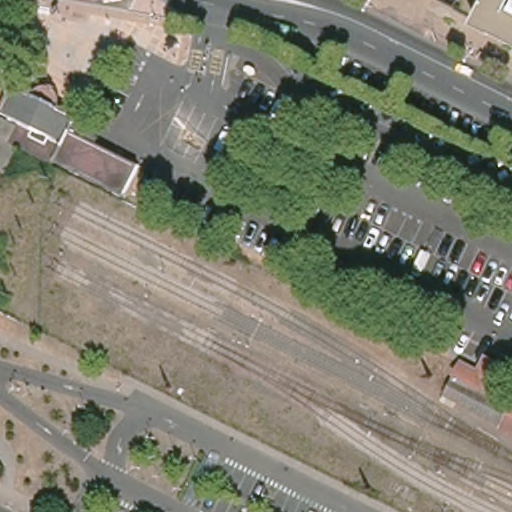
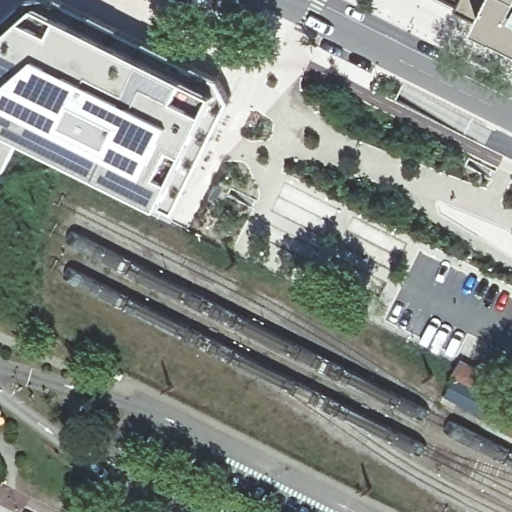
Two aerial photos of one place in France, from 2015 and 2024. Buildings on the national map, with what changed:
new [(231,104),(178,211),(167,207),(10,129),(0,124),(0,27),(29,1),(41,0),(56,0),(219,79),(231,104)]
unchanged [(457,9),(462,0),(502,0),(489,25),(457,9)]
unchanged [(512,0),(512,36),(489,25),(502,0),(512,0)]
demolished [(46,96),(54,100),(61,104),(62,105),(80,114),(74,128),(141,163),(127,190),(60,157),(57,161),(16,139),(26,118),(6,107),(18,82),(38,92),(46,96)]
demolished [(0,119),(3,113),(20,122),(13,137),(0,130),(0,119)]
demolished [(3,172),(0,171),(0,144),(2,140),(17,148),(5,173),(3,172)]
unchanged [(462,366),(464,363),(480,372),(485,362),(511,376),(506,386),(512,389),(512,406),(457,377),(462,366)]
unchanged [(512,406),(512,433),(505,429),(506,426),(447,395),(457,377),(512,406)]

